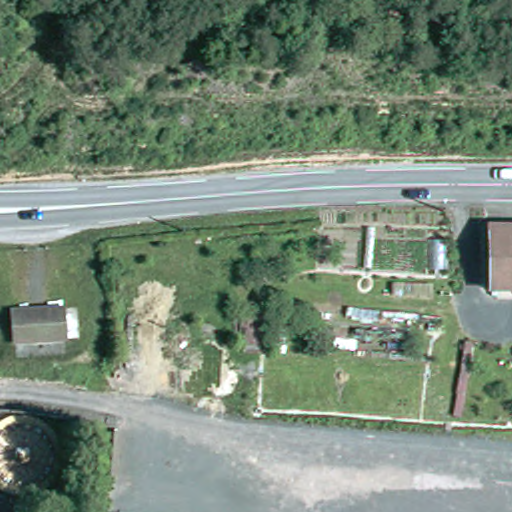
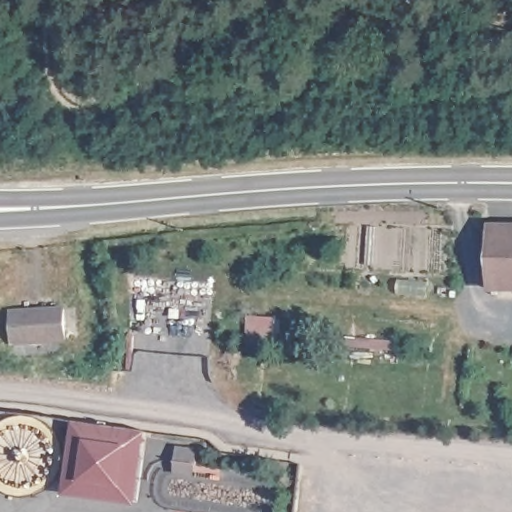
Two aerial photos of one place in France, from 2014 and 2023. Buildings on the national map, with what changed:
unchanged [(493,291),(494,232),(512,232),(512,291),(493,291)]
unchanged [(15,319),(54,313),(69,314),(72,342),(21,352),(15,319)]
new [(137,505),(63,495),(72,423),(146,433),(137,505)]

